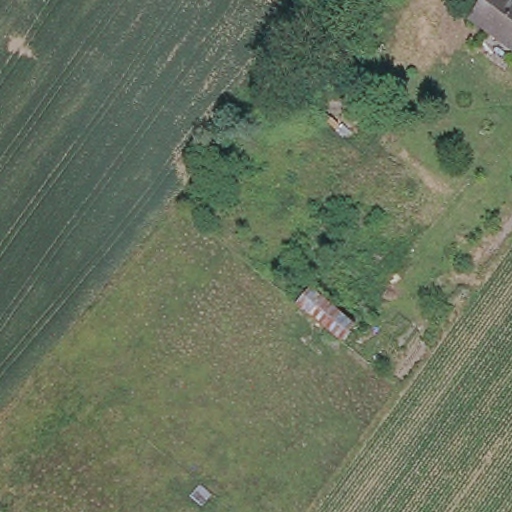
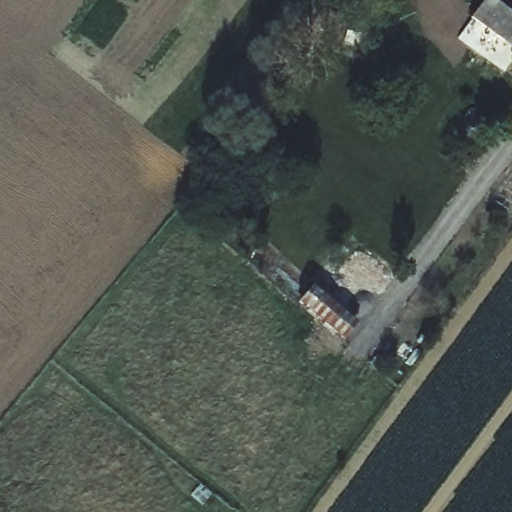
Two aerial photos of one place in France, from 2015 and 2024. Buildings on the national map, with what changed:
unchanged [(512,49),(475,23),(492,0),(512,0),(512,49)]

